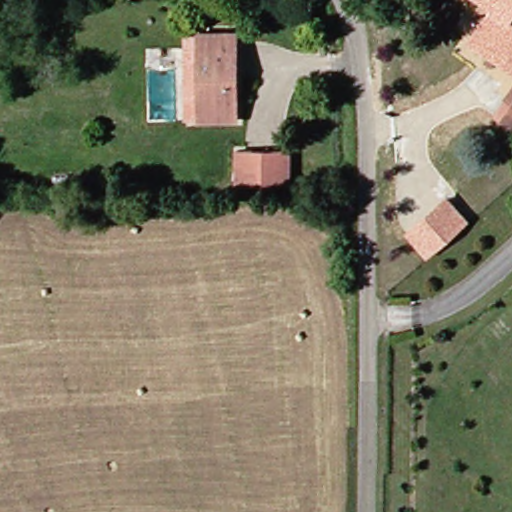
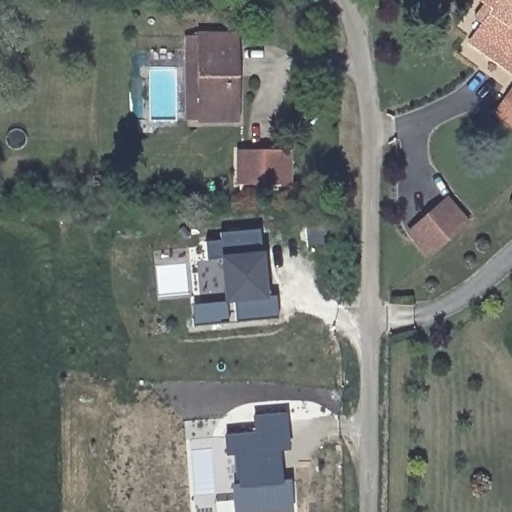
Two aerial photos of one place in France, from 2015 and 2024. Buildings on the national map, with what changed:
unchanged [(480,0),(512,0),(512,12),(505,19),(512,26),(512,72),(505,79),(458,38),(487,6),(480,0)]
unchanged [(189,34),(199,33),(229,32),(239,31),(240,68),(242,115),(203,117),(192,118),(189,34)]
unchanged [(491,115),(512,87),(512,130),(491,115)]
unchanged [(238,151),(290,148),(292,180),(240,182),(238,151)]
new [(446,197),(470,222),(427,259),(404,234),(446,197)]
new [(227,299),(223,258),(207,260),(206,242),(220,241),(220,234),(260,230),(264,276),(269,275),(271,294),(276,294),(278,317),(236,320),(234,299),(227,300),(230,321),(192,330),(192,302),(227,299)]
new [(227,436),(256,433),(255,417),(286,414),(289,448),(279,449),(282,480),(291,480),(293,508),(273,512),(235,512),(233,490),(241,484),(238,452),(226,459),(227,436)]

